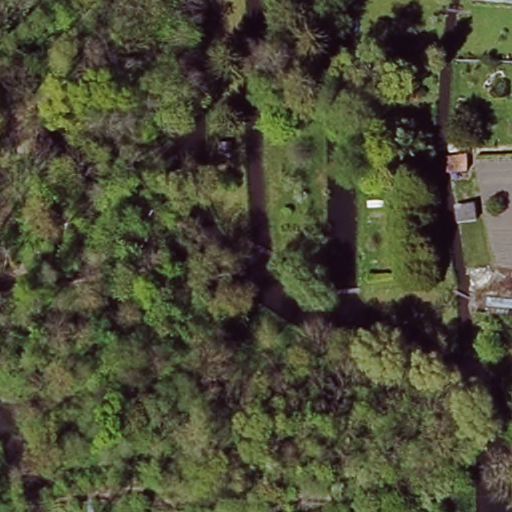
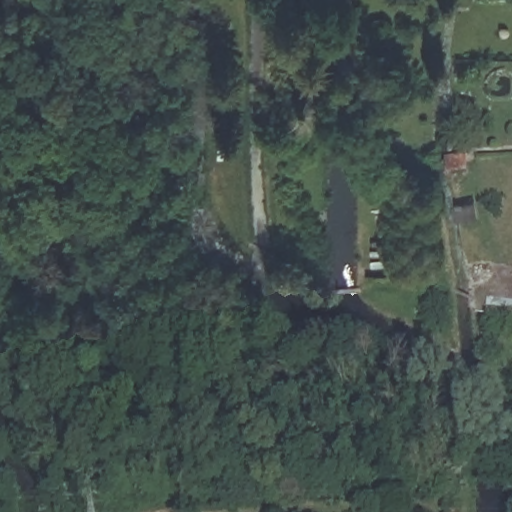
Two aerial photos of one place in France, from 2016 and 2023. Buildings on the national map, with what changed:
unchanged [(450,173),(450,157),(466,156),(467,172),(450,173)]
unchanged [(477,218),(460,221),(458,207),(476,205),(477,218)]

